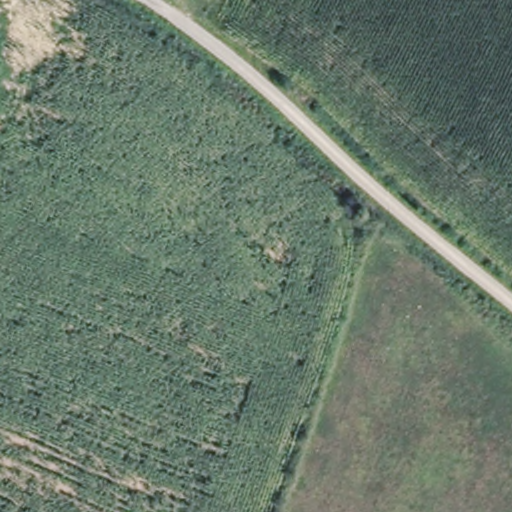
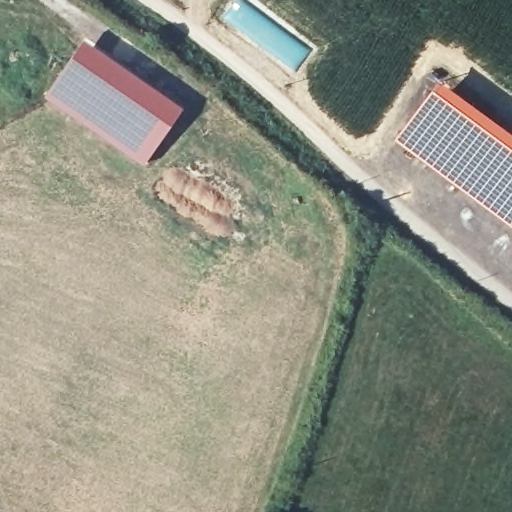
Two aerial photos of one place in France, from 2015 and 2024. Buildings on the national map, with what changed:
new [(85,36),(115,56),(186,105),(144,165),(44,96),(85,36)]
new [(471,96),(512,127),(512,224),(395,137),(439,76),(471,96)]

